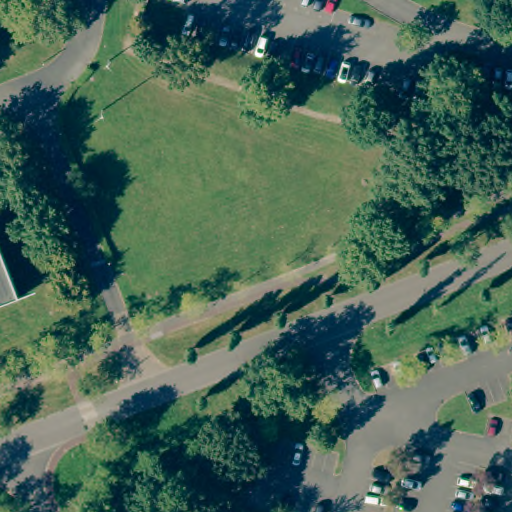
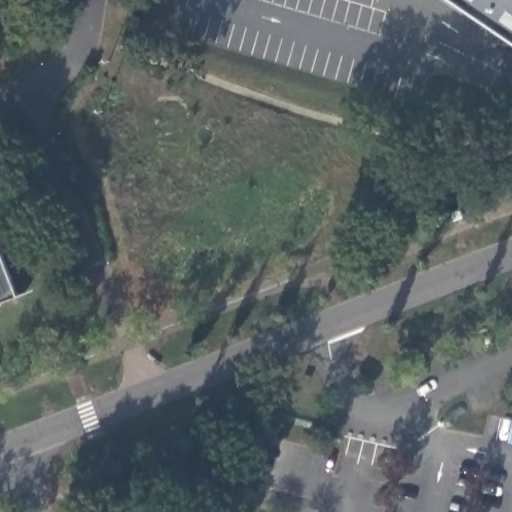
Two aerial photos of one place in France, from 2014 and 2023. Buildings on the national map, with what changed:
new [(453,0),(512,0),(512,39),(453,0)]
unchanged [(0,303),(0,245),(19,295),(0,303)]

